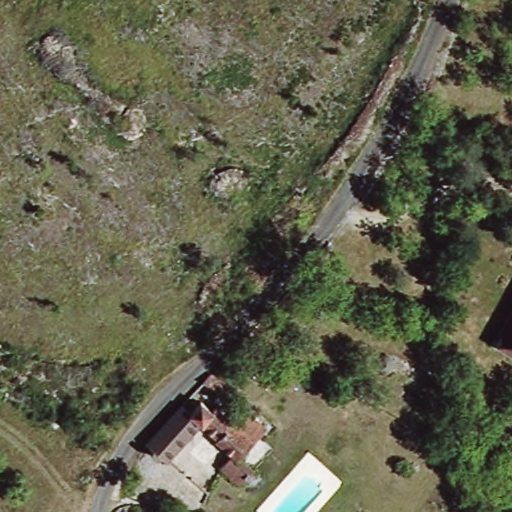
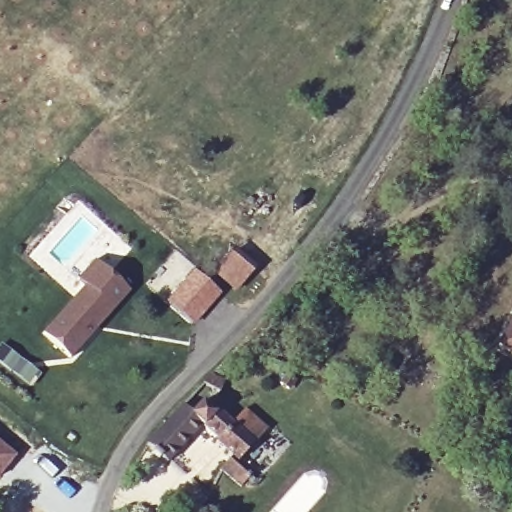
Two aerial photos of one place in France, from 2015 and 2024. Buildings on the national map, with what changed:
new [(87,286),(80,279),(95,261),(130,292),(70,359),(42,335),(87,286)]
new [(194,326),(166,302),(194,270),(221,294),(194,326)]
unchanged [(498,342),(512,317),(512,350),(498,342)]
new [(42,372),(30,387),(0,363),(0,343),(1,341),(42,372)]
unchanged [(201,378),(210,369),(223,374),(218,385),(201,378)]
unchanged [(170,462),(164,457),(162,460),(155,453),(157,451),(150,445),(185,405),(195,413),(205,402),(215,411),(218,408),(236,423),(248,409),(270,428),(242,459),(265,479),(258,486),(252,487),(248,484),(246,486),(225,469),(235,455),(219,441),(221,439),(204,425),(170,462)]
new [(0,476),(0,441),(17,455),(0,476)]

